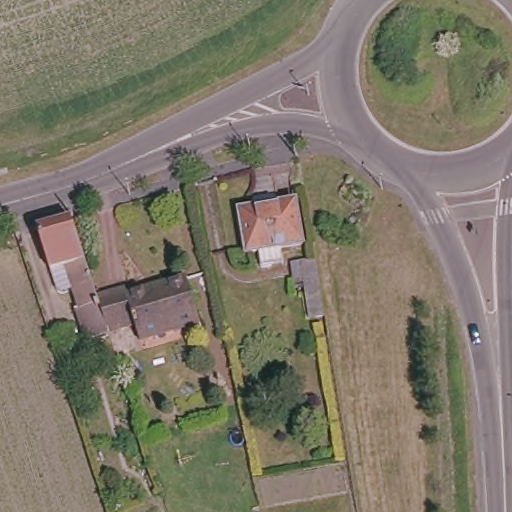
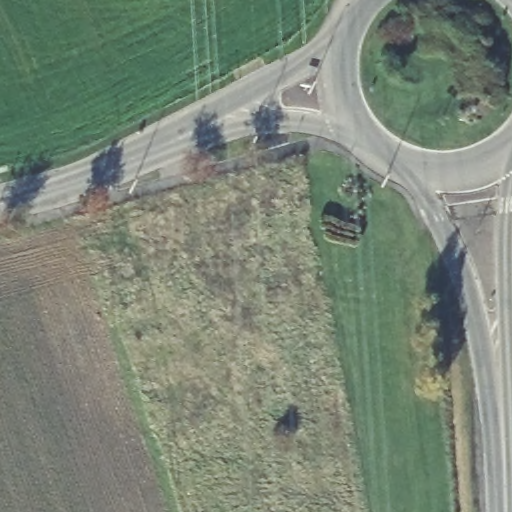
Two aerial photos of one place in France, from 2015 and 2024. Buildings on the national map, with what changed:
demolished [(276,246),(280,257),(259,261),(256,247),(243,249),(236,205),(293,199),(299,240),(276,246)]
demolished [(91,343),(88,331),(82,333),(74,311),(81,308),(68,266),(52,272),(40,231),(73,221),(99,298),(111,337),(91,343)]
demolished [(306,308),(303,277),(293,278),(289,261),(314,257),(321,306),(321,312),(307,312),(306,308)]
demolished [(128,290),(131,298),(189,280),(201,325),(143,343),(139,328),(111,337),(99,298),(128,290)]
demolished [(73,332),(80,361),(63,369),(53,338),(73,332)]

